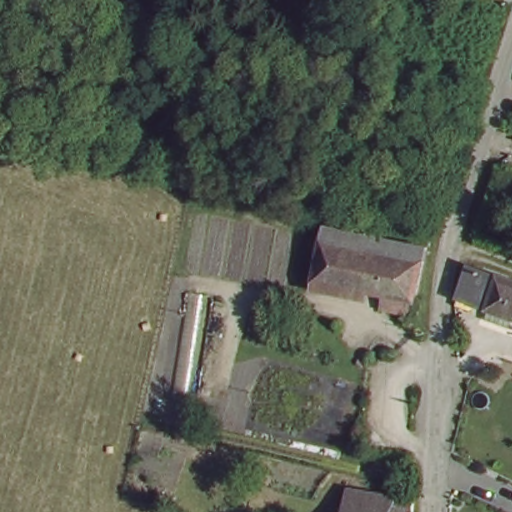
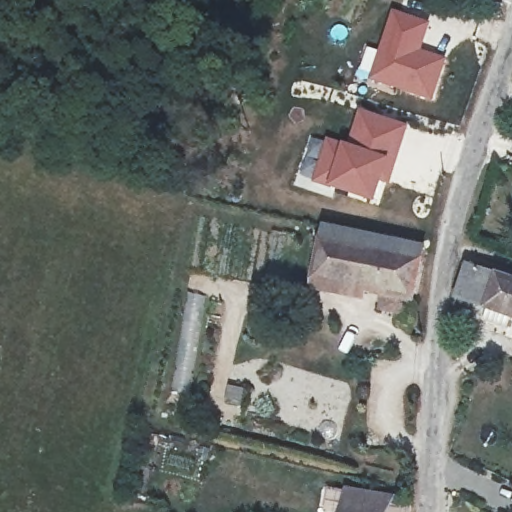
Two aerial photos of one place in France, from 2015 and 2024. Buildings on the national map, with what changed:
new [(392,10),(430,23),(422,49),(446,58),(432,101),(366,79),(392,10)]
new [(326,138),(347,144),(361,109),(408,126),(388,185),(382,183),(375,204),(310,183),(326,138)]
unchanged [(332,280),(318,275),(312,284),(296,279),(303,248),(318,252),(325,226),(343,231),(332,280)]
unchanged [(379,291),(332,280),(343,231),(388,243),(379,291)]
unchanged [(417,300),(379,291),(388,243),(418,251),(417,300)]
unchanged [(512,317),(455,294),(468,266),(512,284),(512,317)]
unchanged [(512,359),(512,368),(506,383),(495,378),(506,356),(512,359)]
unchanged [(346,497),(394,508),(393,512),(342,512),(346,497)]

